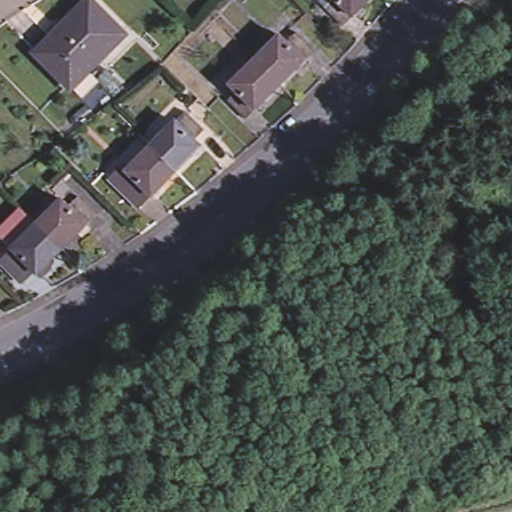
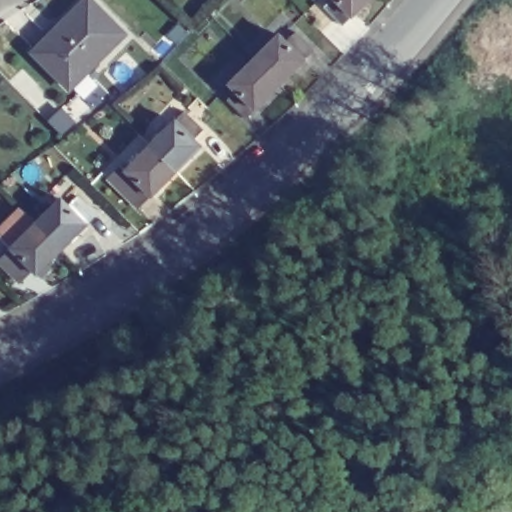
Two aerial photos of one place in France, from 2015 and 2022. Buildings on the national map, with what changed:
unchanged [(55,26),(50,22),(73,0),(90,0),(117,27),(60,80),(30,49),(55,26)]
unchanged [(345,30),(319,5),(324,0),(374,0),(345,30)]
unchanged [(275,29),(280,35),(290,25),(310,44),(275,79),(250,54),(275,29)]
unchanged [(275,79),(244,112),(225,94),(232,86),(226,80),(250,54),(275,79)]
unchanged [(186,103),(205,121),(197,130),(203,136),(179,162),(152,136),(186,103)]
unchanged [(110,171),(122,158),(127,162),(152,136),(179,162),(154,188),(141,201),(110,171)]
unchanged [(16,275),(0,259),(0,255),(9,245),(0,236),(0,227),(20,205),(34,220),(60,194),(67,201),(75,192),(94,211),(60,246),(34,272),(28,265),(16,275)]

